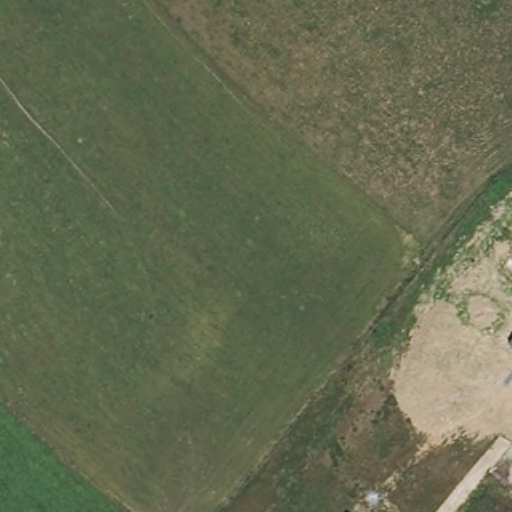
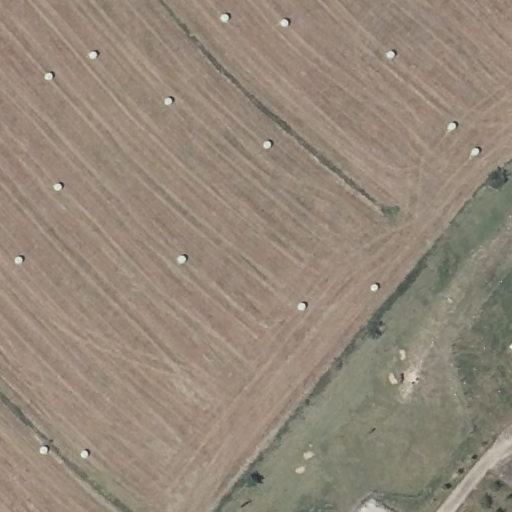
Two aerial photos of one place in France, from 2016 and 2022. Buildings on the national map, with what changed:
unchanged [(496,368),(512,349),(512,381),(496,368)]

